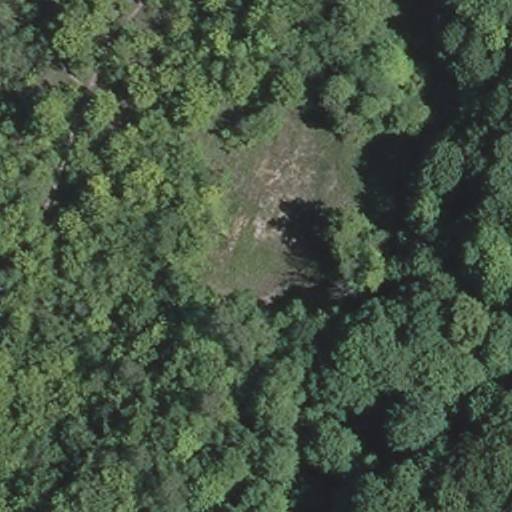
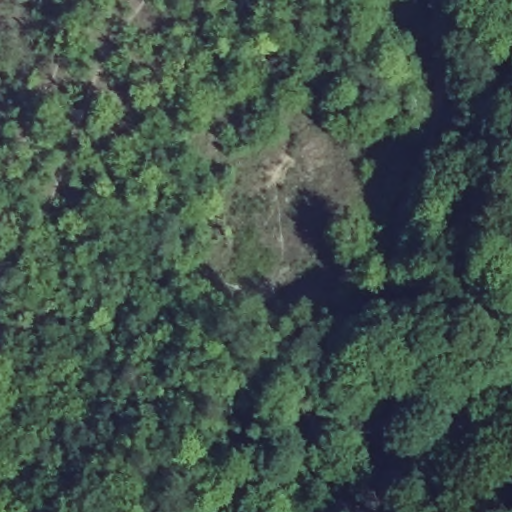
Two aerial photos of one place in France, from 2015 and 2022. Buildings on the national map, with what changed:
unchanged [(486,178),(481,228),(466,227),(461,226),(451,225),(458,165),(487,169),(486,178)]
unchanged [(464,358),(446,395),(391,369),(407,331),(464,358)]

